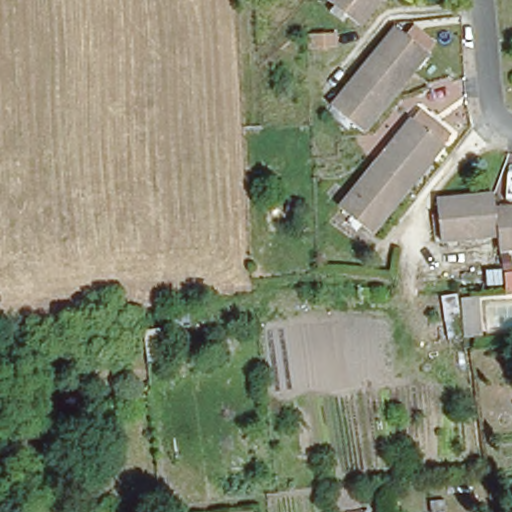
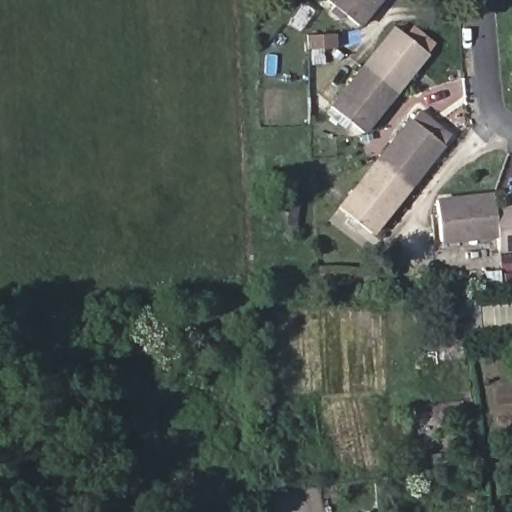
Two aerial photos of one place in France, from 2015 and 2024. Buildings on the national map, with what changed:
unchanged [(327,0),(380,0),(359,26),(327,1),(327,0)]
unchanged [(397,27),(400,29),(408,19),(416,25),(436,41),(395,92),(364,67),(397,27)]
unchanged [(315,50),(314,35),(342,32),(343,47),(315,50)]
unchanged [(360,135),(329,109),(364,67),(395,92),(360,135)]
unchanged [(415,118),(418,115),(421,111),(424,113),(438,124),(453,136),(408,192),(377,165),(415,118)]
unchanged [(370,239),(339,211),(377,165),(408,192),(370,239)]
unchanged [(498,236),(439,242),(436,199),(493,194),(495,214),(498,236)]
unchanged [(495,214),(512,212),(512,252),(500,252),(498,236),(495,214)]

